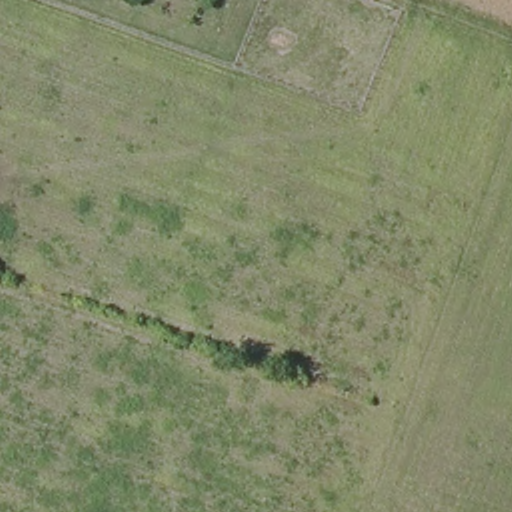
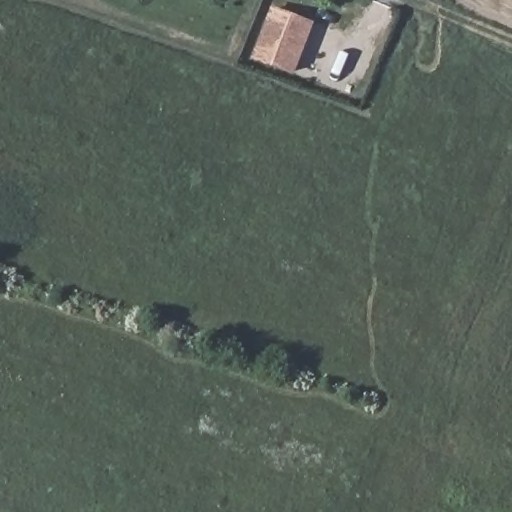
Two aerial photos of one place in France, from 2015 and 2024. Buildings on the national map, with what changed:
new [(295,75),(252,58),(272,7),(315,23),(295,75)]

